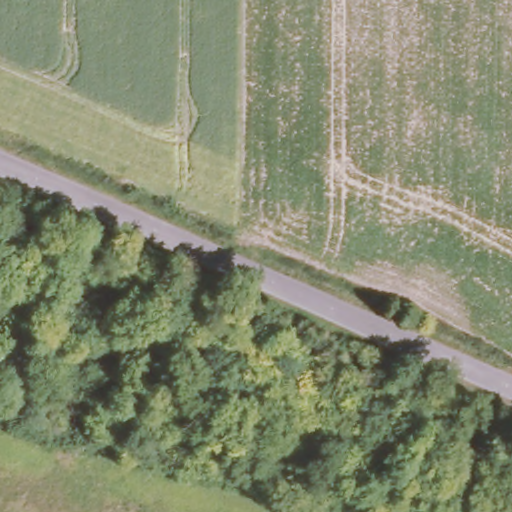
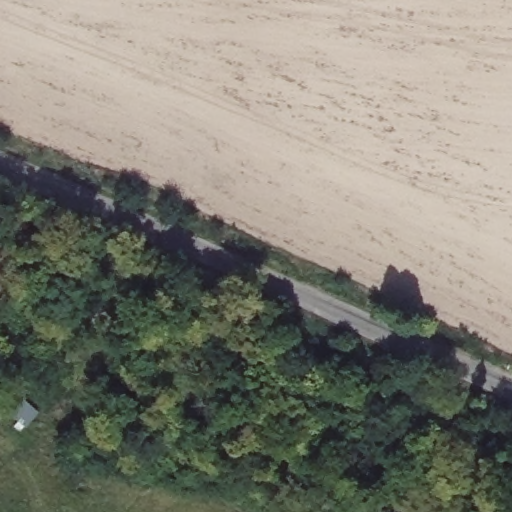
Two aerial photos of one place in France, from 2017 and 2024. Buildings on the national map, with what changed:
[]

